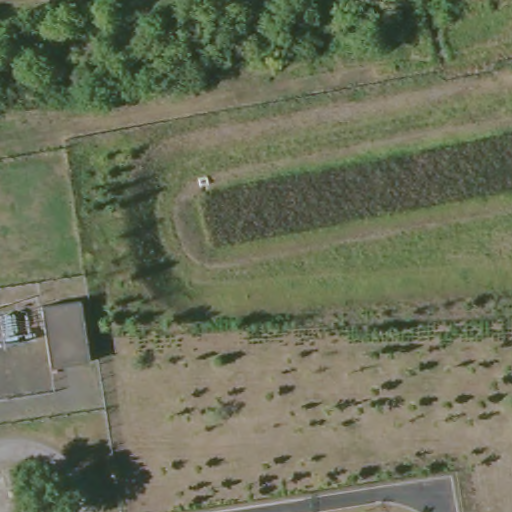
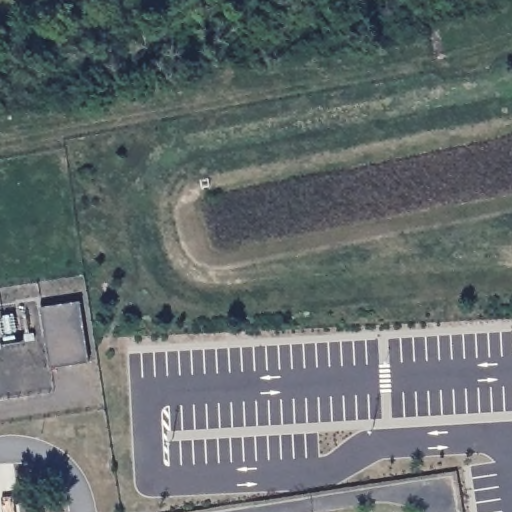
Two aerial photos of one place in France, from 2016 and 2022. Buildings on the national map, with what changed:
unchanged [(91,361),(53,367),(42,305),(80,300),(91,361)]

